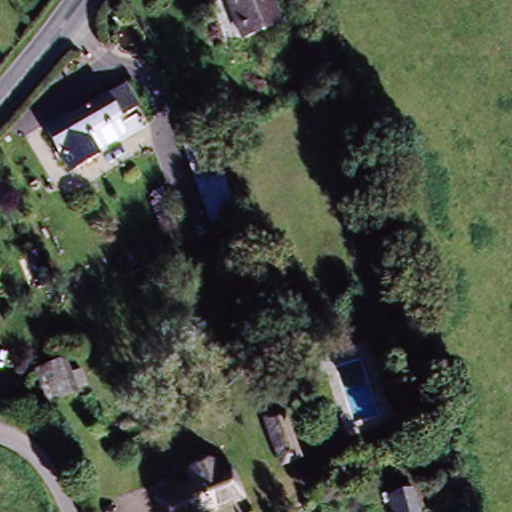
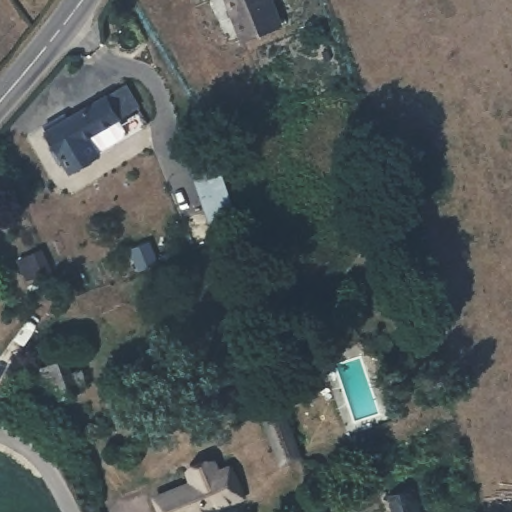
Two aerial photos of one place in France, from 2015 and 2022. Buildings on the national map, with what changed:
unchanged [(248,43),(232,0),(277,0),(287,29),(248,43)]
unchanged [(122,119),(128,129),(127,136),(102,152),(104,155),(71,174),(48,130),(125,83),(140,107),(122,119)]
unchanged [(238,217),(214,223),(197,147),(221,141),(238,217)]
unchanged [(55,278),(41,284),(31,261),(45,254),(55,278)]
unchanged [(67,364),(77,398),(52,406),(42,373),(67,364)]
unchanged [(284,414),(302,456),(281,464),(264,422),(284,414)]
unchanged [(238,501),(213,512),(157,512),(153,506),(187,491),(182,481),(203,472),(212,468),(217,478),(227,474),(238,501)]
unchanged [(417,493),(421,512),(392,512),(388,499),(417,493)]

